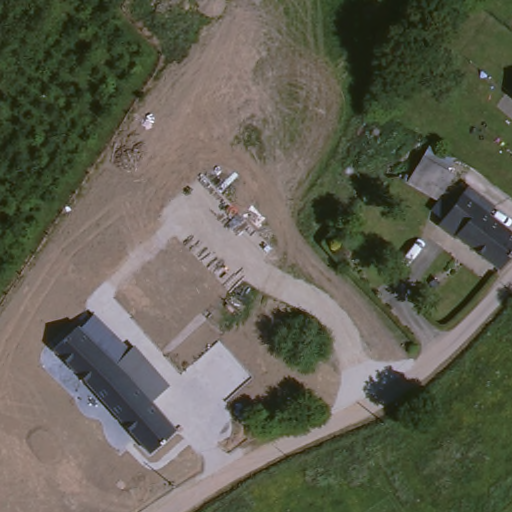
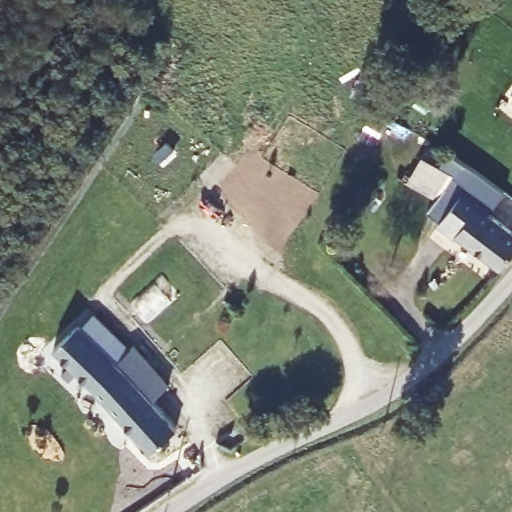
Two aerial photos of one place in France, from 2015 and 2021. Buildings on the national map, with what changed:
unchanged [(424,156),(452,170),(439,192),(411,178),(424,156)]
unchanged [(463,189),(492,211),(484,222),(512,242),(512,251),(492,273),(437,225),(463,189)]
unchanged [(52,356),(92,321),(129,358),(132,355),(168,391),(151,408),(178,435),(151,460),(52,356)]

